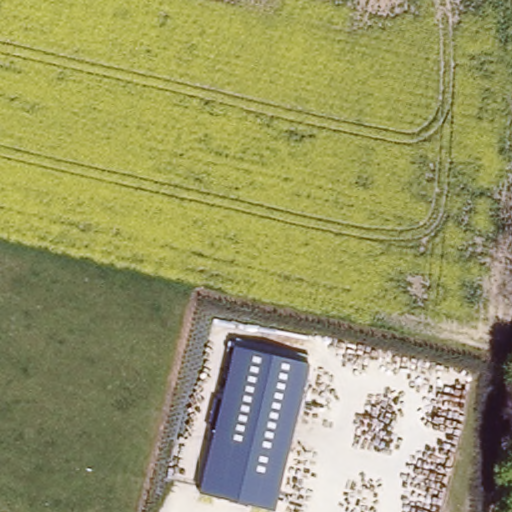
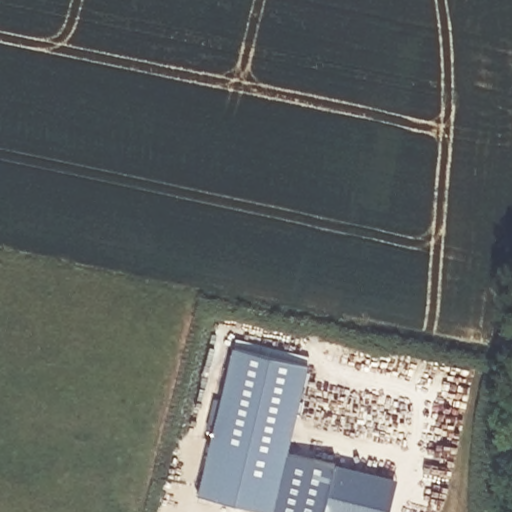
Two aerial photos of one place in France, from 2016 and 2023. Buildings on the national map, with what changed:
unchanged [(273,508),(200,492),(234,344),(306,362),(273,508)]
new [(273,508),(286,451),(396,476),(388,512),(288,512),(273,508)]

